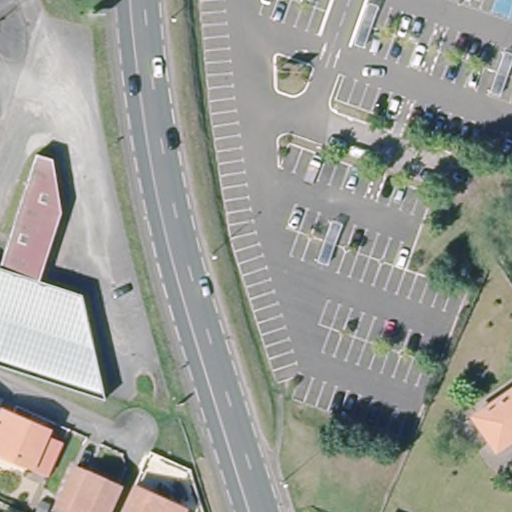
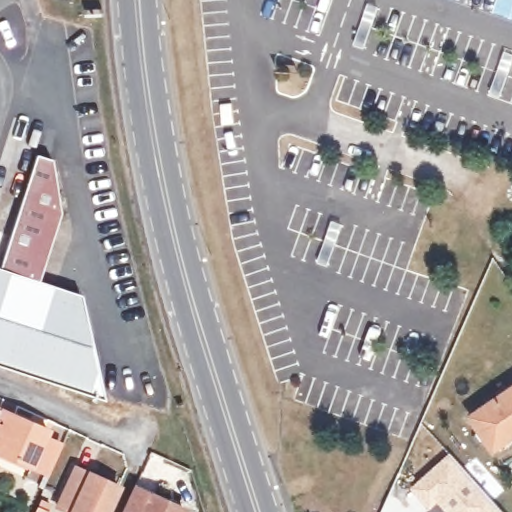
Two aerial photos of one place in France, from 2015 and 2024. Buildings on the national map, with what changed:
unchanged [(92,398),(0,367),(0,269),(2,269),(41,156),(54,160),(60,208),(35,280),(44,283),(72,293),(73,301),(92,398)]
unchanged [(472,414),(512,388),(512,437),(496,448),(472,414)]
unchanged [(0,415),(26,426),(27,425),(43,432),(41,438),(39,442),(57,450),(45,476),(27,468),(0,456),(0,415)]
new [(448,512),(440,501),(430,508),(411,488),(452,453),(504,512),(448,512)]
unchanged [(74,512),(58,504),(75,466),(89,473),(89,475),(116,487),(105,512),(74,512)]
unchanged [(167,503),(167,501),(182,508),(181,512),(123,512),(135,488),(167,503)]

